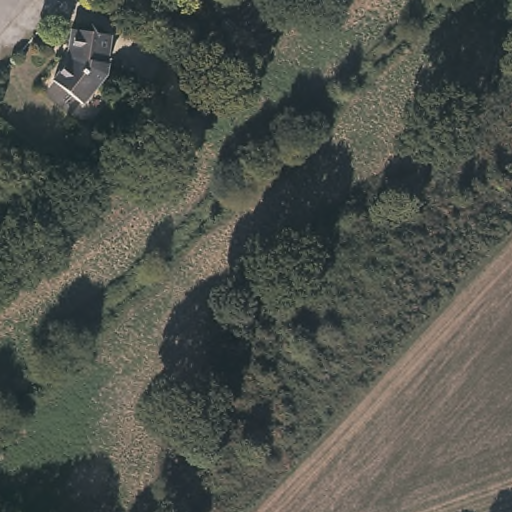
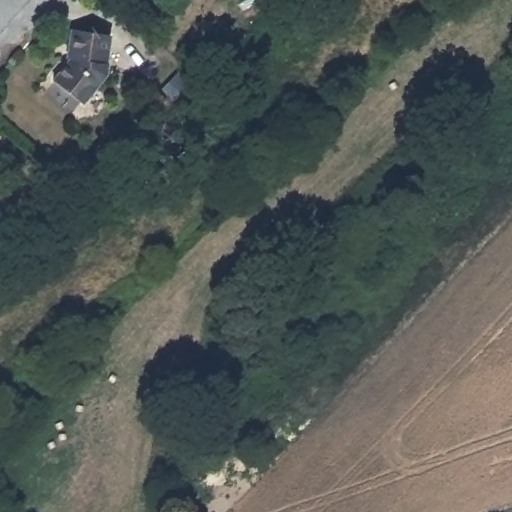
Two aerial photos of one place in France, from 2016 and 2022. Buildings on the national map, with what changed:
unchanged [(109,33),(104,58),(107,65),(107,71),(105,75),(81,103),(52,77),(73,50),(66,46),(69,27),(109,33)]

